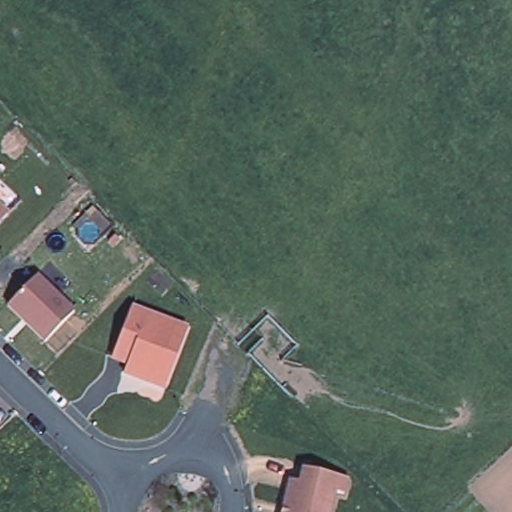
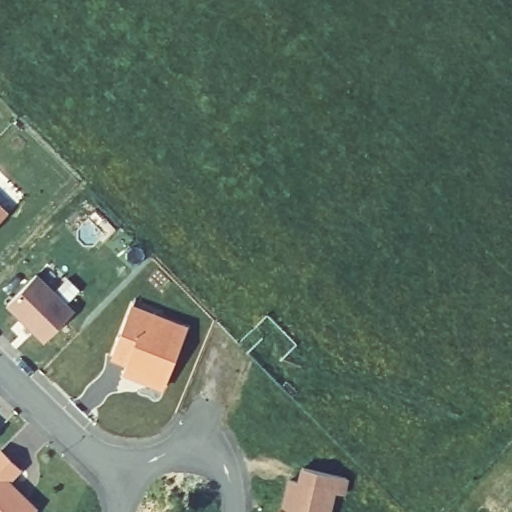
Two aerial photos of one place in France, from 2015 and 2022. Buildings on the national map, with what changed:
unchanged [(8,217),(0,225),(0,209),(8,217)]
unchanged [(7,306),(40,274),(75,311),(44,343),(7,306)]
unchanged [(188,329),(165,387),(124,372),(128,362),(112,356),(131,307),(188,329)]
new [(23,470),(10,481),(38,509),(35,512),(0,512),(0,448),(23,470)]
unchanged [(349,478),(345,493),(336,491),(331,512),(284,512),(291,479),(301,481),(304,467),(349,478)]

